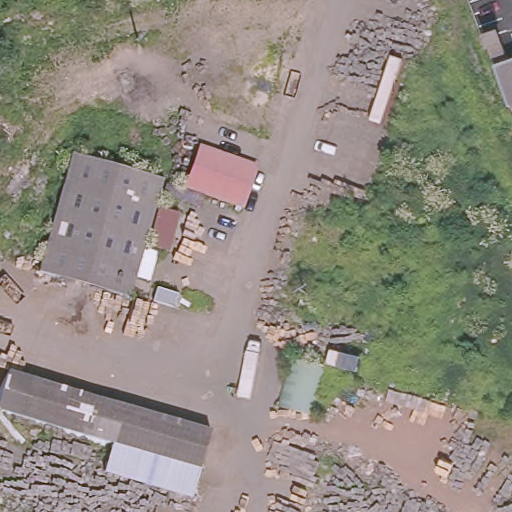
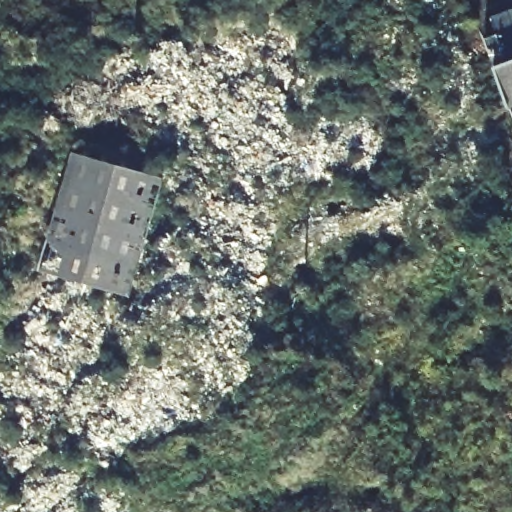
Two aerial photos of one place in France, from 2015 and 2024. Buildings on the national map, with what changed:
unchanged [(485,42),(498,38),(507,64),(512,63),(512,107),(508,108),(485,42)]
demolished [(253,163),(243,202),(185,188),(195,148),(253,163)]
unchanged [(158,181),(128,300),(43,279),(39,270),(66,158),(158,181)]
demolished [(285,354),(319,365),(309,420),(273,410),(285,354)]
demolished [(0,373),(83,392),(100,439),(0,415),(0,373)]
demolished [(83,392),(210,427),(199,466),(113,442),(100,439),(83,392)]

